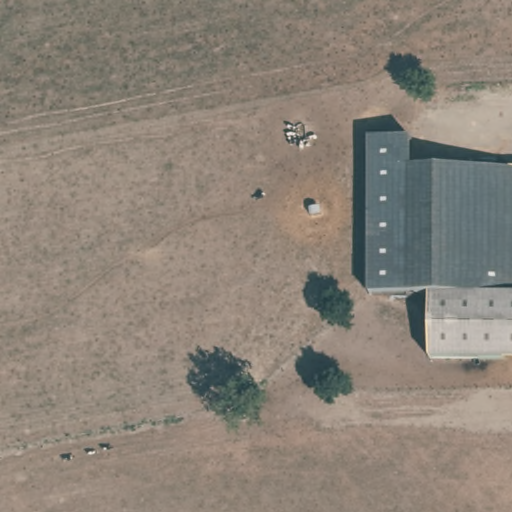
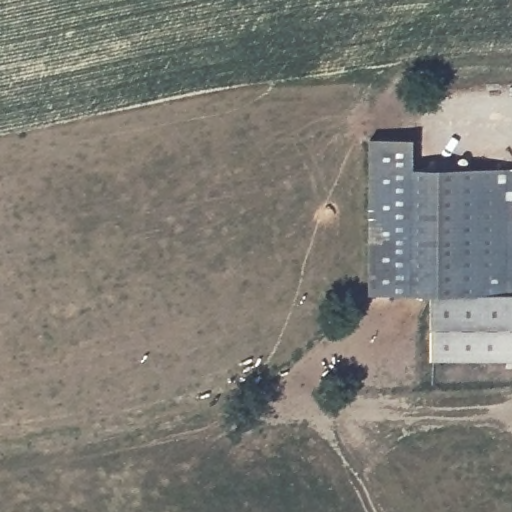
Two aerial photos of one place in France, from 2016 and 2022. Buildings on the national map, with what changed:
unchanged [(372,298),(371,146),(414,145),(414,176),(412,301),(372,298)]
unchanged [(512,177),(512,299),(427,301),(412,301),(414,176),(512,177)]
unchanged [(512,362),(424,364),(427,301),(512,299),(512,362)]

